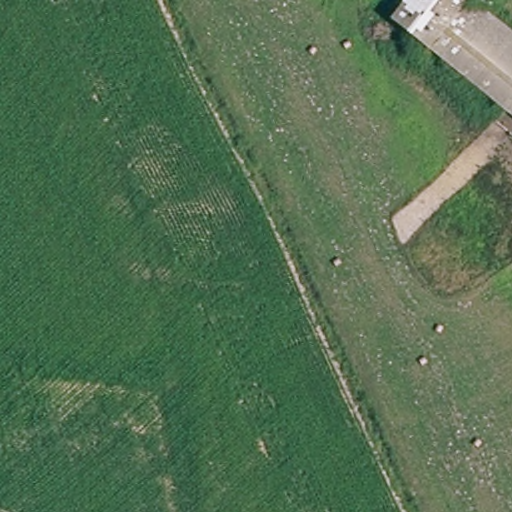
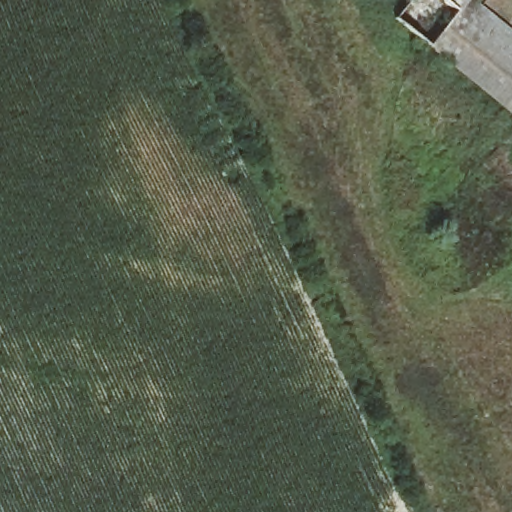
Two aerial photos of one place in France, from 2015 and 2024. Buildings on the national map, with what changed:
unchanged [(411,0),(467,0),(457,13),(512,58),(512,115),(394,20),(411,0)]
unchanged [(512,58),(457,13),(467,0),(475,0),(512,30),(512,58)]

